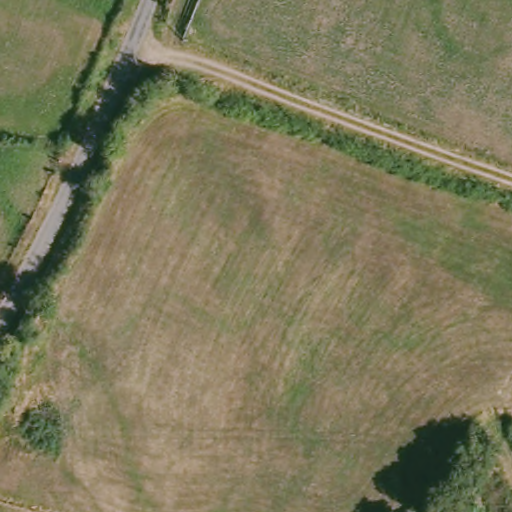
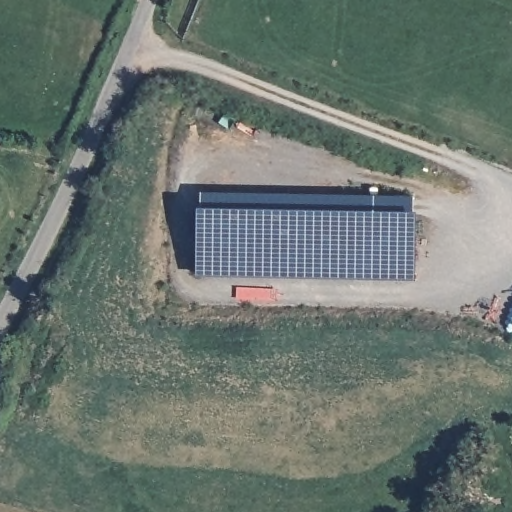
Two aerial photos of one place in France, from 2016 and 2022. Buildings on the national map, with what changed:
new [(197,205),(201,205),(202,188),(411,191),(411,208),(415,208),(415,277),(197,272),(197,205)]

